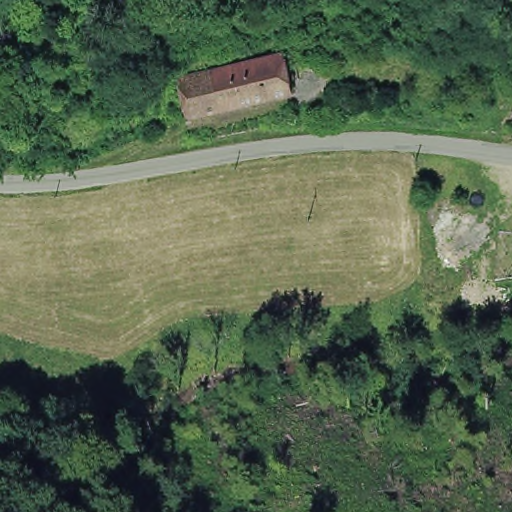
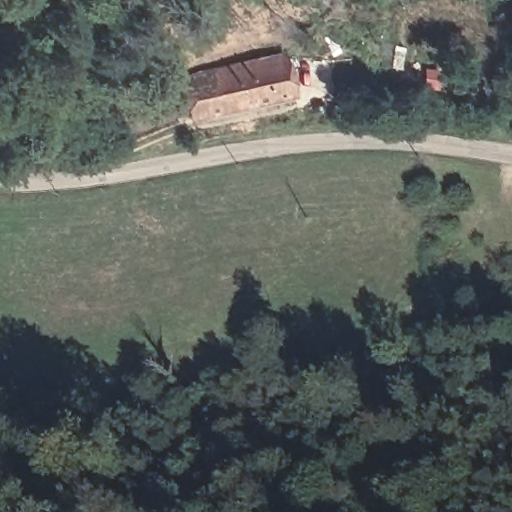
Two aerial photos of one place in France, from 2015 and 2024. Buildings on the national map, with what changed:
unchanged [(188,118),(180,79),(283,56),(292,94),(188,118)]

